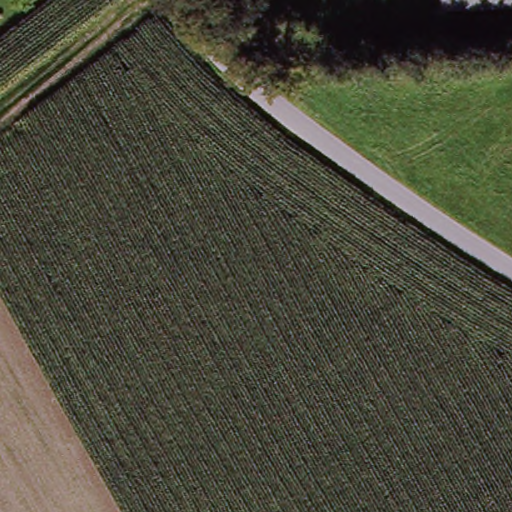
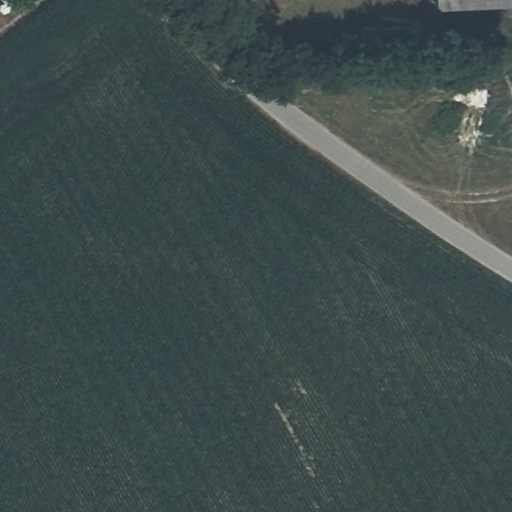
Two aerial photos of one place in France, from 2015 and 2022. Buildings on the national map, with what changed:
unchanged [(440,0),(512,0),(512,9),(440,11),(440,0)]

